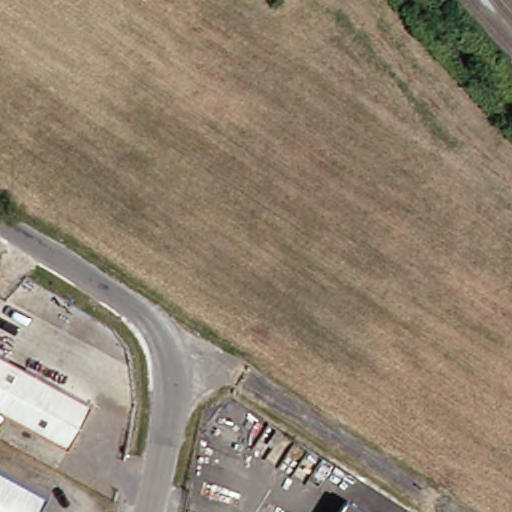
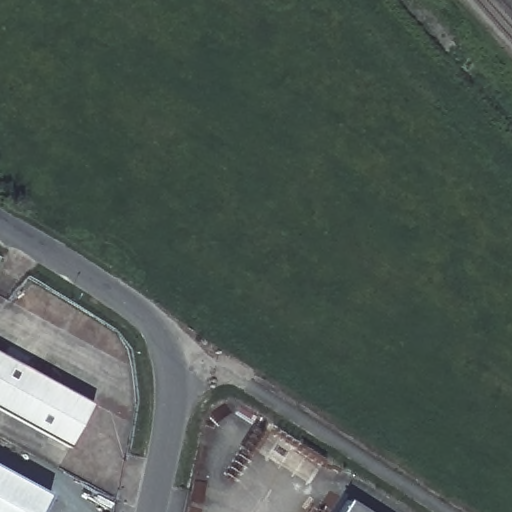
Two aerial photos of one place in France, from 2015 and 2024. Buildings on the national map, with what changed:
unchanged [(0,414),(0,357),(88,405),(64,449),(0,414)]
unchanged [(36,512),(0,512),(0,471),(45,495),(36,512)]
unchanged [(342,502),(358,512),(335,512),(342,502)]

